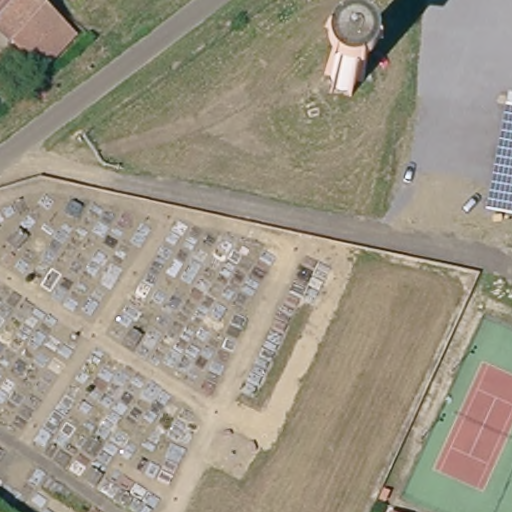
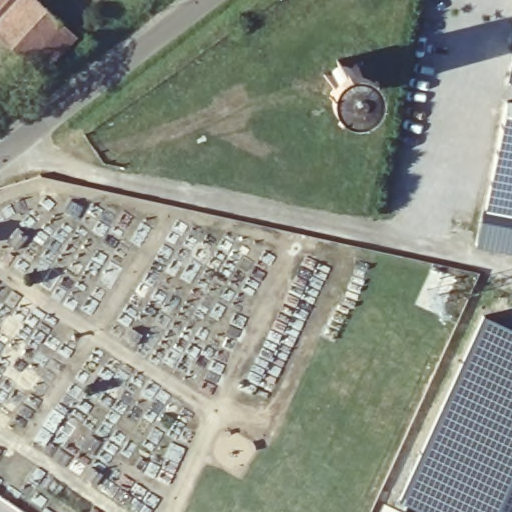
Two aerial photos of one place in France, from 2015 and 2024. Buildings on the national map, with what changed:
unchanged [(0,23),(0,9),(8,0),(34,0),(40,6),(15,36),(0,23)]
unchanged [(40,6),(71,32),(44,62),(15,36),(40,6)]
new [(510,83),(512,75),(512,83),(510,83)]
unchanged [(486,211),(507,100),(512,100),(512,216),(486,211)]
new [(431,418),(479,313),(512,327),(512,512),(419,512),(417,511),(396,503),(431,418)]

